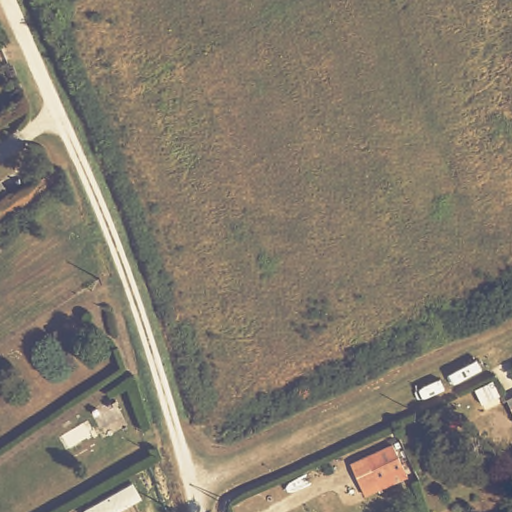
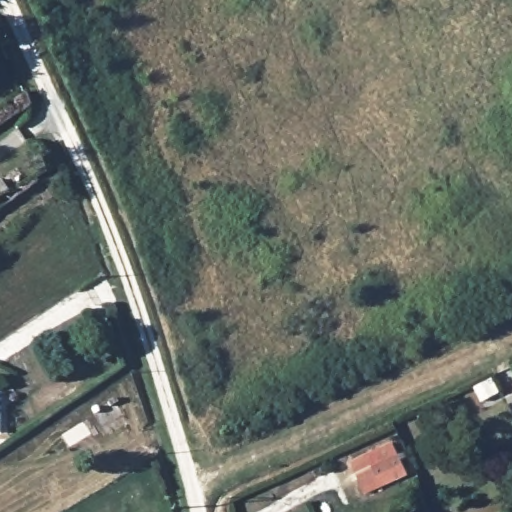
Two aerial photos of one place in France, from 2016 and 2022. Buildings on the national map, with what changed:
unchanged [(0,191),(0,182),(6,191),(2,194),(0,191)]
unchanged [(511,399),(512,399),(512,400),(511,399)]
unchanged [(114,401),(123,417),(102,429),(94,413),(114,401)]
unchanged [(407,477),(382,488),(373,469),(368,457),(379,452),(393,445),(407,477)]

